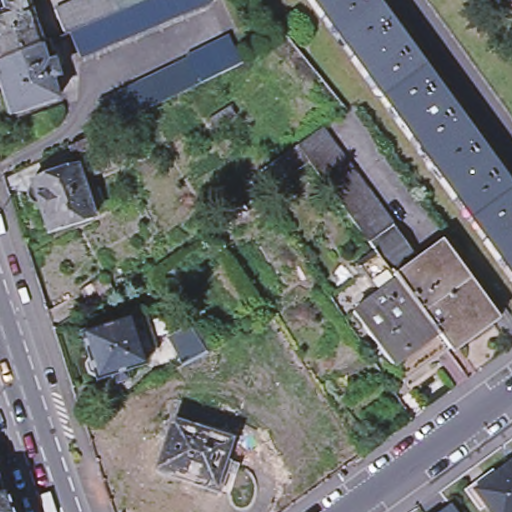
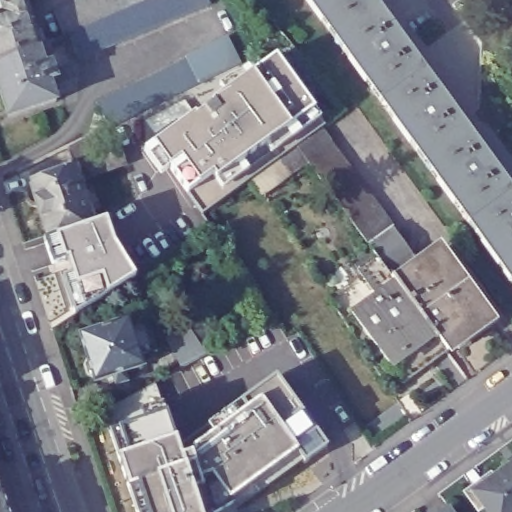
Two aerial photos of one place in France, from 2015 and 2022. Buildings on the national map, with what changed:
unchanged [(0,5),(0,3),(10,0),(26,0),(41,45),(38,47),(0,62),(0,13),(3,12),(0,5)]
unchanged [(69,34),(59,10),(83,0),(113,0),(118,12),(69,34)]
unchanged [(149,0),(209,0),(210,4),(80,60),(69,34),(118,12),(149,0)]
unchanged [(113,0),(149,0),(118,12),(113,0)]
unchanged [(374,0),(486,155),(442,189),(305,0),(374,0)]
demolished [(423,0),(447,0),(512,81),(512,124),(423,0)]
demolished [(458,0),(512,74),(512,81),(447,0),(458,0)]
unchanged [(48,80),(56,101),(8,116),(0,91),(0,62),(38,47),(43,65),(50,62),(55,77),(48,80)]
new [(144,150),(155,144),(225,94),(219,87),(251,65),(256,71),(276,56),(314,109),(319,117),(311,125),(287,143),(241,176),(221,189),(218,180),(214,174),(200,185),(188,192),(174,172),(161,175),(144,150)]
unchanged [(97,104),(191,58),(203,83),(113,127),(109,129),(97,104)]
unchanged [(341,311),(367,293),(348,267),(368,253),(367,252),(299,160),(287,143),(311,125),(391,235),(411,261),(429,248),(479,318),(439,347),(437,348),(392,382),(379,365),(341,311)]
unchanged [(241,176),(287,143),(299,160),(251,192),(241,176)]
unchanged [(109,153),(117,175),(108,179),(70,194),(65,179),(59,159),(88,145),(96,159),(109,153)]
unchanged [(486,155),(512,192),(512,287),(442,189),(486,155)]
unchanged [(74,205),(88,200),(91,214),(78,217),(83,231),(36,245),(28,220),(24,218),(23,217),(20,215),(19,213),(18,210),(18,208),(18,205),(18,202),(19,199),(21,197),(20,195),(65,179),(70,194),(74,205)]
new [(83,231),(108,222),(113,243),(136,276),(108,292),(74,316),(61,278),(72,274),(68,258),(51,263),(46,242),(83,231)]
unchanged [(84,388),(84,386),(83,385),(78,382),(74,372),(78,365),(69,342),(118,326),(135,320),(146,356),(130,361),(133,373),(84,388)]
unchanged [(181,368),(168,340),(188,328),(196,322),(211,345),(203,352),(205,355),(181,368)]
new [(131,490),(127,490),(118,457),(107,430),(103,412),(157,385),(164,413),(174,440),(180,458),(214,434),(208,425),(278,375),(316,432),(328,445),(236,512),(233,505),(219,512),(138,512),(131,490)]
demolished [(222,463),(229,465),(221,493),(156,472),(171,426),(193,433),(228,445),(222,463)]
unchanged [(484,508),(479,512),(475,512),(462,492),(490,472),(494,478),(512,465),(512,512),(487,512),(484,508)]
unchanged [(0,483),(7,505),(0,507),(0,483)]
unchanged [(0,507),(7,505),(9,512),(0,512),(0,507)]
unchanged [(445,505),(450,512),(436,512),(445,505)]

